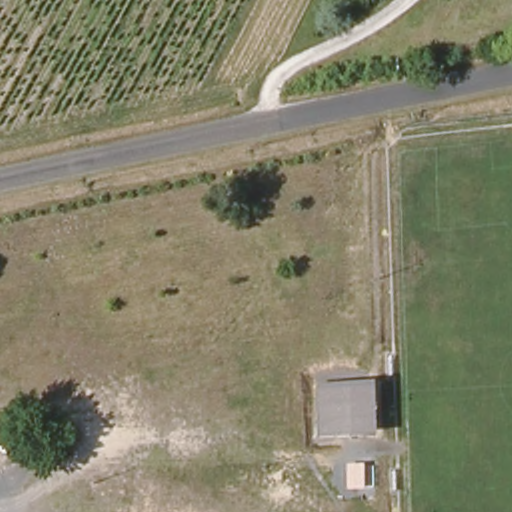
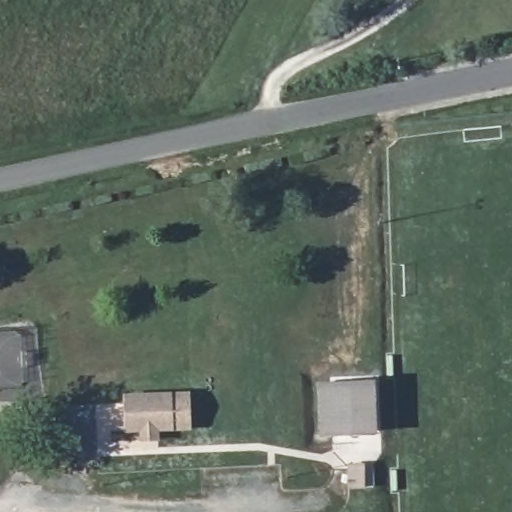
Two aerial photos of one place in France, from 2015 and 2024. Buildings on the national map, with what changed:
unchanged [(321,432),(324,378),(356,379),(356,432),(321,432)]
unchanged [(356,432),(356,379),(378,381),(377,433),(356,432)]
new [(192,432),(159,432),(159,442),(140,442),(140,433),(125,433),(124,395),(191,393),(192,432)]

